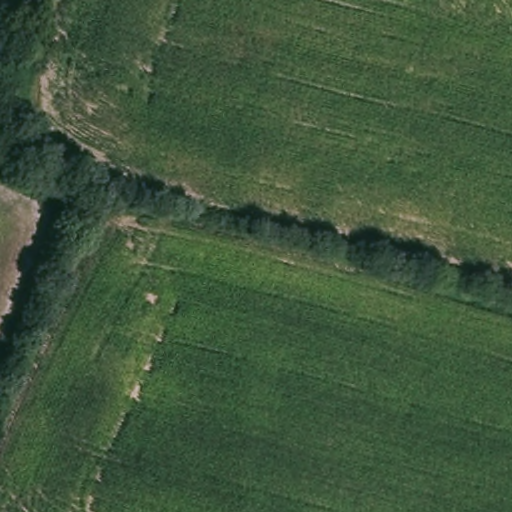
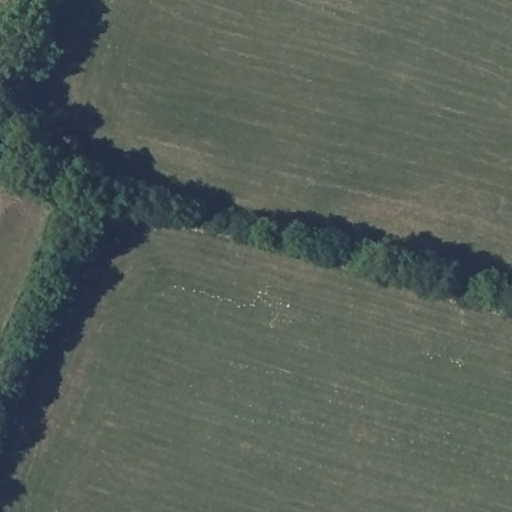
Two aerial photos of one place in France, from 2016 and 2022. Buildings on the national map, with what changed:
[]

